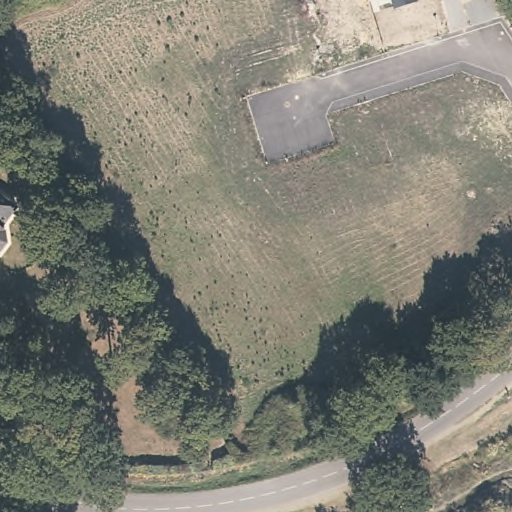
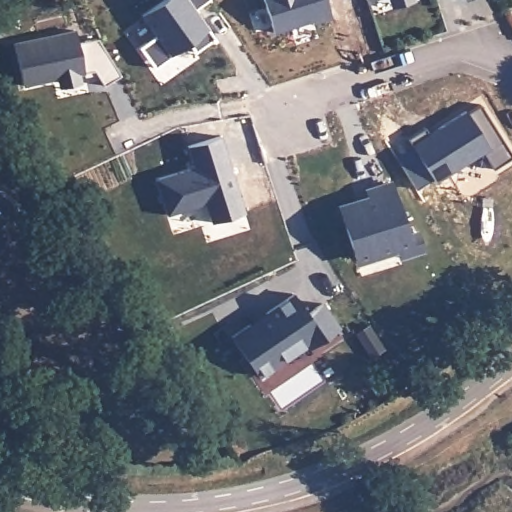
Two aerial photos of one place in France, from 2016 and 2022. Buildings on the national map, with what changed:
new [(191,44),(172,57),(154,71),(139,50),(157,37),(144,17),(168,0),(209,0),(194,11),(214,37),(197,52),(191,44)]
new [(317,22),(316,19),(277,31),(267,0),(329,0),(335,17),(317,22)]
new [(103,86),(96,71),(79,75),(81,85),(60,89),(58,81),(24,88),(16,42),(75,30),(78,43),(97,38),(120,75),(103,86)]
new [(433,135),(470,112),(471,114),(483,106),(512,151),(512,161),(496,171),(486,154),(438,184),(411,140),(429,129),(433,135)]
new [(217,222),(210,204),(168,217),(156,179),(195,167),(189,148),(219,137),(245,212),(217,222)]
new [(370,200),(367,190),(391,182),(407,235),(416,232),(421,249),(398,255),(396,246),(356,258),(340,209),(370,200)]
unchanged [(11,215),(1,229),(5,231),(6,244),(0,252),(0,206),(11,215)]
new [(310,349),(306,343),(259,375),(232,333),(291,293),(307,311),(322,303),(341,326),(310,349)]

